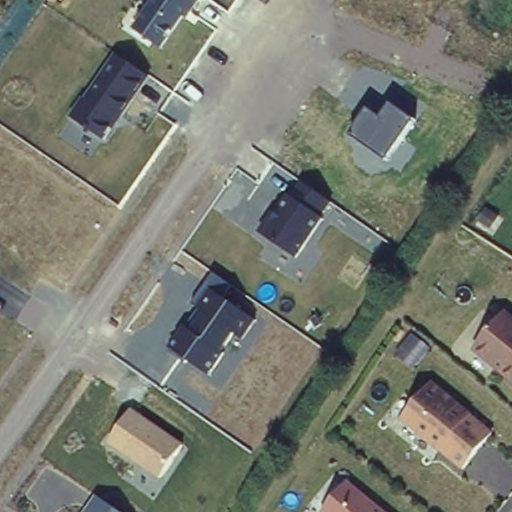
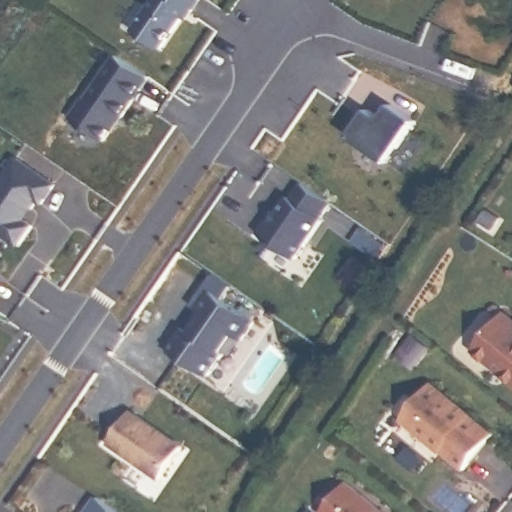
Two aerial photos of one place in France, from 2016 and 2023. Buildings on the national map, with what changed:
unchanged [(183,16),(162,47),(135,30),(153,0),(199,0),(187,19),(183,16)]
unchanged [(105,141),(70,118),(113,51),(151,77),(105,141)]
unchanged [(387,162),(351,136),(370,109),(383,119),(394,102),(417,119),(387,162)]
new [(14,160),(53,186),(40,204),(36,201),(21,220),(28,225),(15,245),(0,234),(0,181),(14,160)]
unchanged [(297,258),(262,234),(300,180),(333,202),(297,258)]
unchanged [(244,340),(234,333),(222,352),(226,353),(210,376),(172,350),(200,309),(194,305),(214,273),(242,292),(233,303),(257,321),(244,340)]
unchanged [(512,309),(512,379),(471,346),(506,305),(512,309)]
new [(414,370),(395,357),(413,336),(432,347),(414,370)]
unchanged [(432,380),(495,430),(467,465),(404,415),(432,380)]
unchanged [(160,480),(108,444),(132,410),(184,447),(160,480)]
unchanged [(351,490),(377,512),(332,512),(351,490)]
unchanged [(96,496),(121,512),(86,512),(96,496)]

